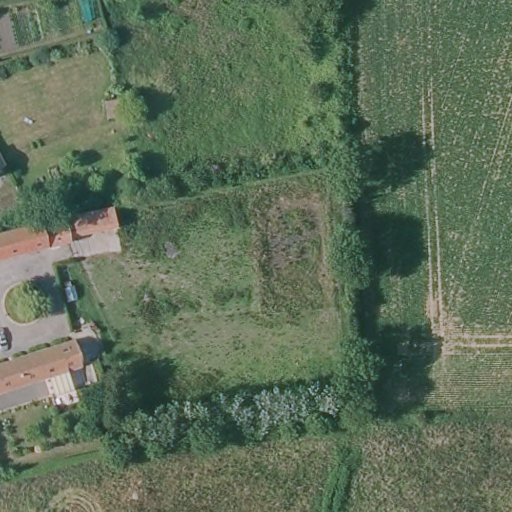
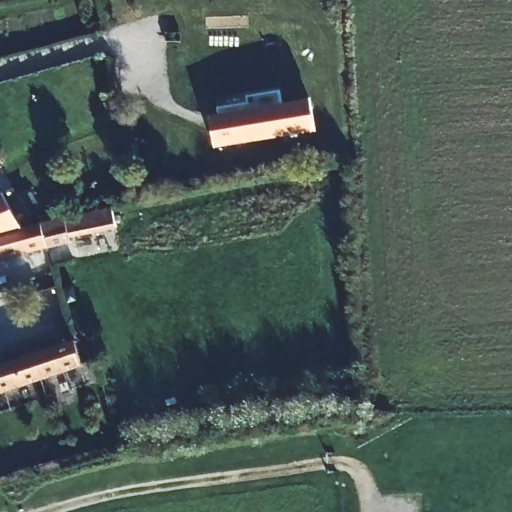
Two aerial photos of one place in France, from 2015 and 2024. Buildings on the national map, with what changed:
new [(317,131),(215,148),(210,114),(240,109),(240,103),(247,102),(245,95),(265,92),(265,87),(283,82),(286,101),(312,97),(315,114),(317,131)]
unchanged [(108,220),(59,230),(55,210),(104,200),(108,220)]
unchanged [(10,251),(0,254),(0,229),(5,227),(37,220),(42,245),(10,251)]
unchanged [(32,345),(70,332),(79,357),(63,362),(70,381),(45,389),(40,370),(0,383),(0,355),(23,347),(32,345)]

